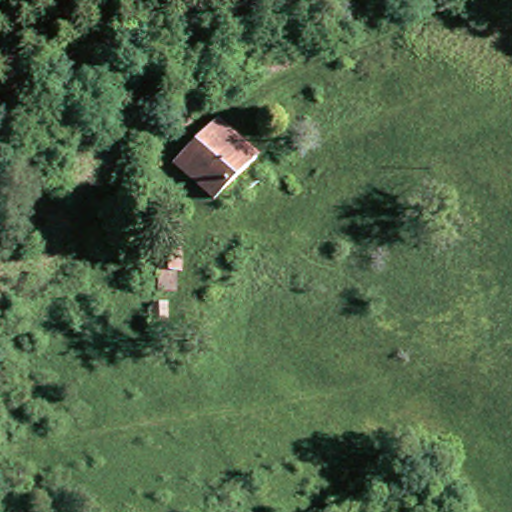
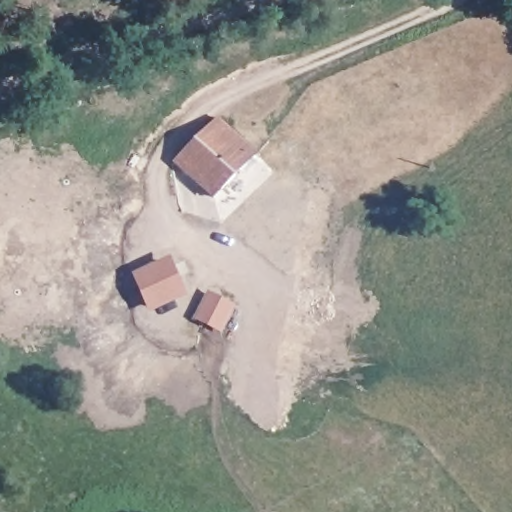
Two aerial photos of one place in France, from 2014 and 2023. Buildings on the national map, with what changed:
unchanged [(189,177),(175,163),(185,154),(221,117),(257,152),(225,184),(212,199),(189,177)]
new [(149,313),(133,273),(170,257),(187,297),(149,313)]
new [(237,306),(222,334),(194,319),(208,290),(237,306)]

